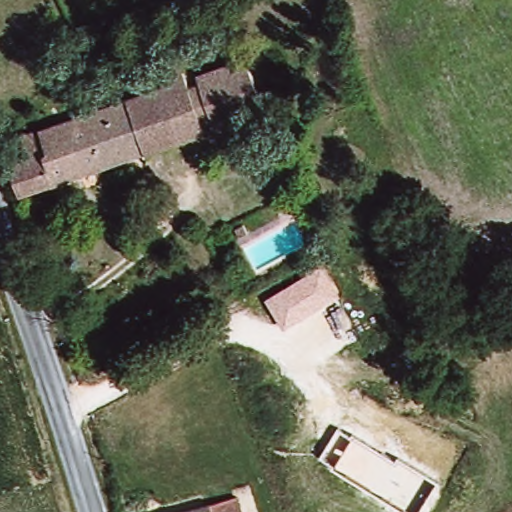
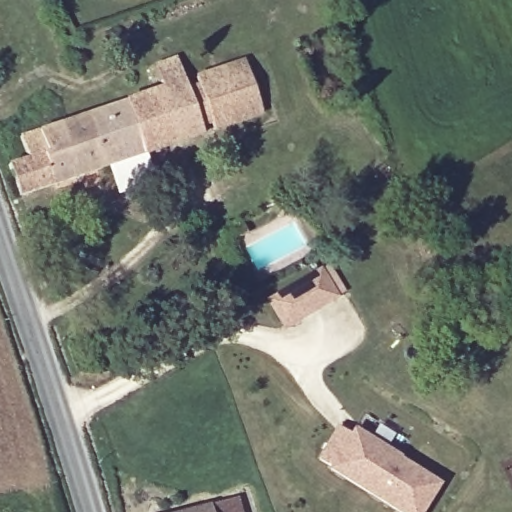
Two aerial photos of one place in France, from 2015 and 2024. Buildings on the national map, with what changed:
unchanged [(7,156),(29,150),(22,128),(167,91),(164,81),(189,74),(192,85),(193,91),(204,88),(202,82),(254,68),(268,121),(215,134),(212,126),(202,129),(205,137),(200,138),(16,187),(7,156)]
new [(325,268),(340,293),(306,314),(289,325),(273,299),(290,289),(325,268)]
new [(352,437),(353,435),(397,460),(399,457),(441,482),(423,512),(406,512),(333,468),(335,466),(321,459),(338,429),(352,437)]
unchanged [(233,512),(186,512),(230,499),(233,512)]

